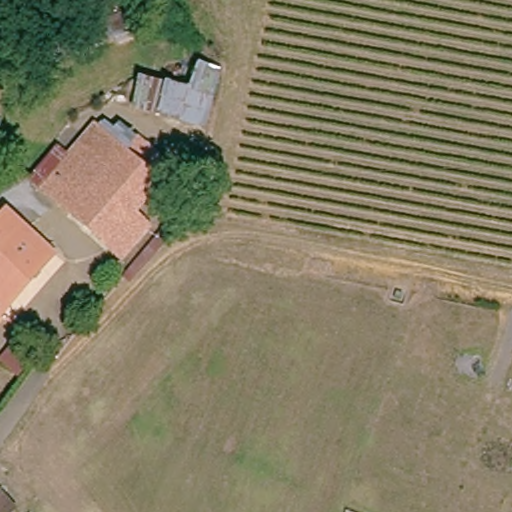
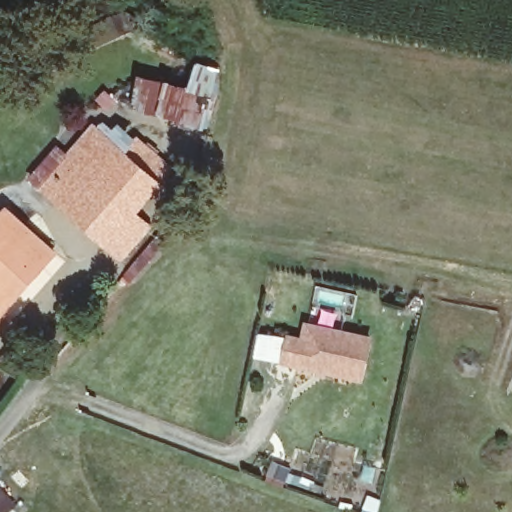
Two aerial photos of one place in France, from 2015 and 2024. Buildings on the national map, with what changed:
unchanged [(212,134),(137,114),(141,81),(192,91),(196,68),(221,75),(212,134)]
unchanged [(104,245),(39,191),(26,181),(50,155),(62,164),(72,173),(83,160),(72,149),(91,129),(102,139),(120,156),(136,139),(169,170),(130,215),(147,230),(120,261),(104,245)]
unchanged [(58,253),(12,311),(0,302),(0,220),(8,210),(58,253)]
new [(301,338),(304,322),(373,336),(363,382),(325,375),(325,378),(313,376),(315,372),(280,365),(287,335),(301,338)]
unchanged [(8,512),(0,512),(0,489),(15,504),(8,512)]

